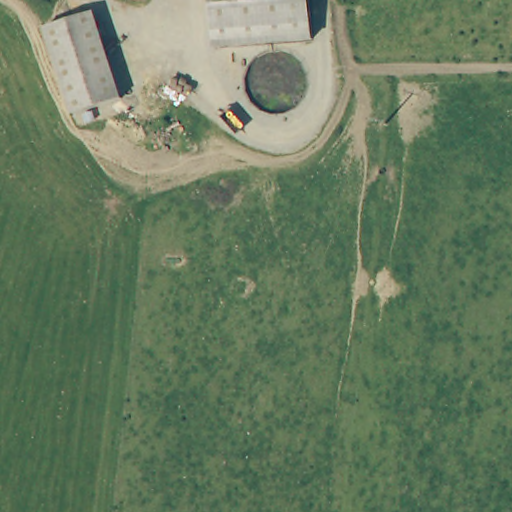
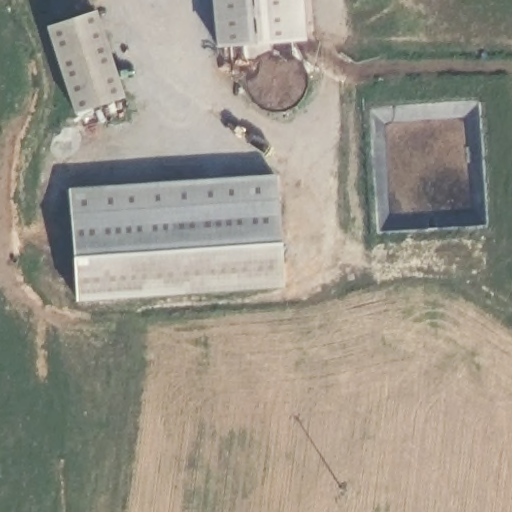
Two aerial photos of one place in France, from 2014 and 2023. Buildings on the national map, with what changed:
unchanged [(327,34),(230,44),(225,0),(323,0),(327,34)]
unchanged [(129,97),(81,114),(50,29),(98,12),(129,97)]
new [(275,174),(283,287),(75,301),(67,187),(275,174)]

